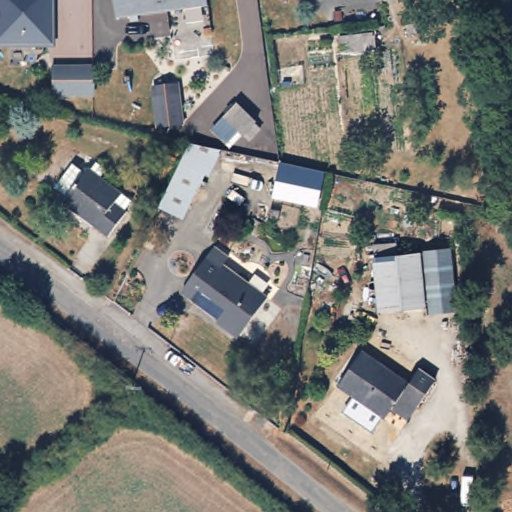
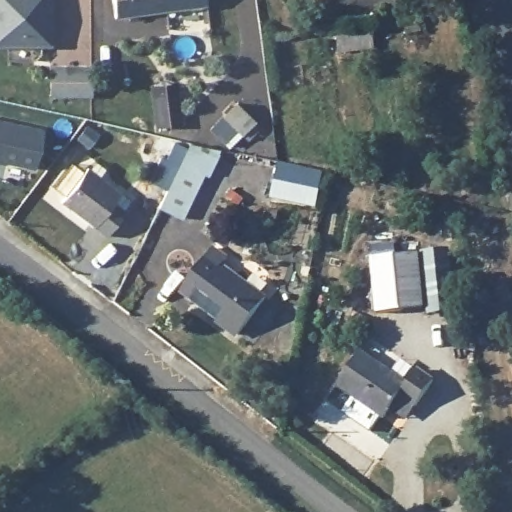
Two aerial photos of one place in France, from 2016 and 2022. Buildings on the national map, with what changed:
unchanged [(53,46),(0,46),(0,0),(51,0),(53,46)]
unchanged [(204,15),(111,25),(109,0),(202,0),(204,15)]
unchanged [(49,101),(50,71),(90,71),(90,102),(49,101)]
unchanged [(179,82),(184,131),(156,132),(151,86),(179,82)]
unchanged [(249,129),(237,138),(220,120),(231,110),(249,129)]
new [(0,120),(43,129),(34,168),(0,161),(0,120)]
unchanged [(183,152),(219,160),(181,225),(151,208),(183,152)]
unchanged [(95,166),(109,175),(104,184),(129,202),(122,211),(126,215),(106,241),(59,205),(62,201),(51,192),(69,171),(79,179),(86,169),(90,173),(95,166)]
unchanged [(512,166),(512,214),(510,214),(507,166),(512,166)]
unchanged [(275,169),(321,176),(315,211),(270,202),(275,169)]
unchanged [(399,258),(420,254),(429,311),(379,313),(373,247),(394,244),(399,258)]
unchanged [(230,260),(224,268),(268,303),(237,340),(180,293),(216,248),(230,260)]
unchanged [(449,251),(455,309),(429,311),(420,254),(449,251)]
unchanged [(394,412),(384,423),(340,389),(365,355),(411,388),(421,374),(437,385),(417,410),(408,423),(394,412)]

